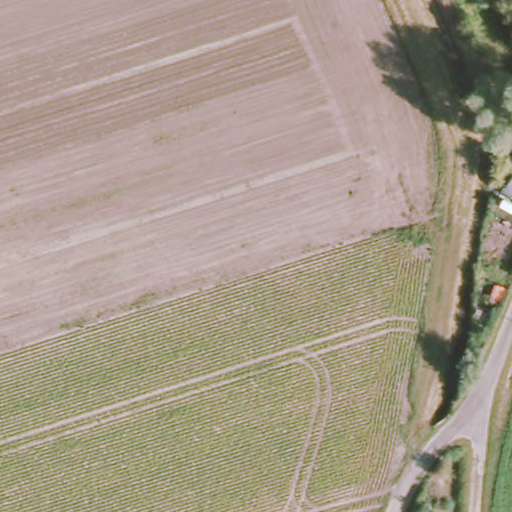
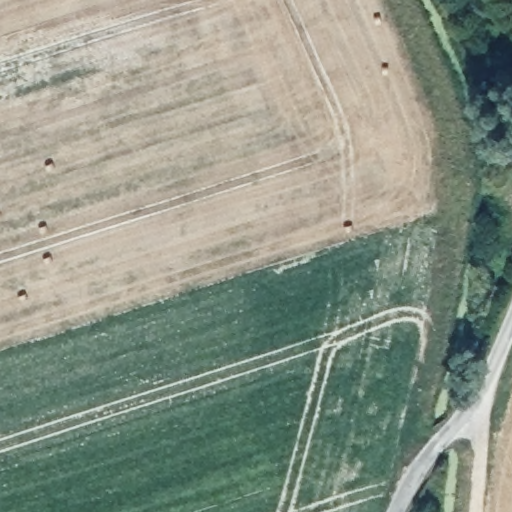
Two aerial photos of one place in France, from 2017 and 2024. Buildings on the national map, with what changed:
unchanged [(512,189),(512,199),(508,205),(498,198),(507,186),(512,189)]

